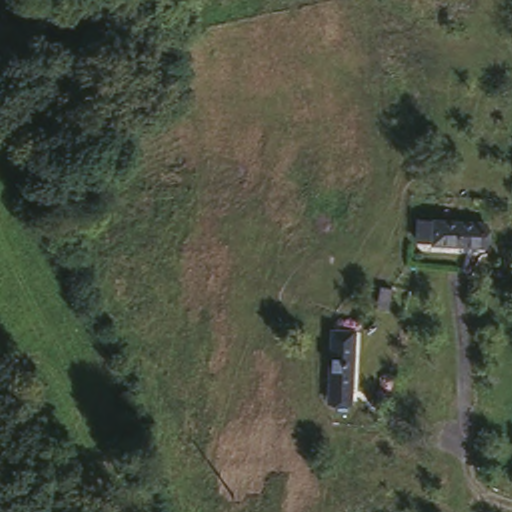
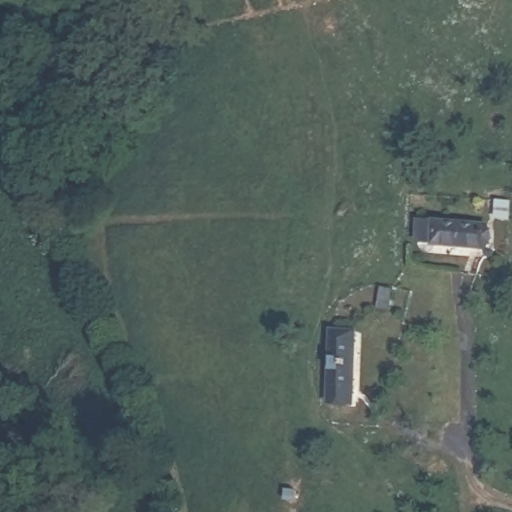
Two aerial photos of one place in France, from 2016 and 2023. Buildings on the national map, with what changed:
unchanged [(492,246),(441,245),(442,242),(420,239),(420,217),(493,221),(492,246)]
unchanged [(386,312),(377,311),(381,286),(390,288),(386,312)]
unchanged [(353,396),(326,393),(334,325),(361,328),(353,396)]

